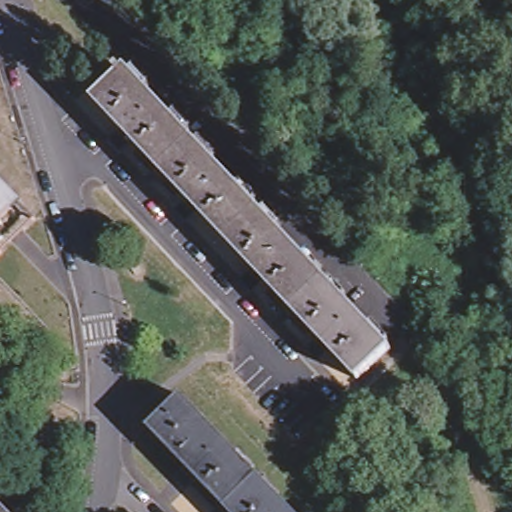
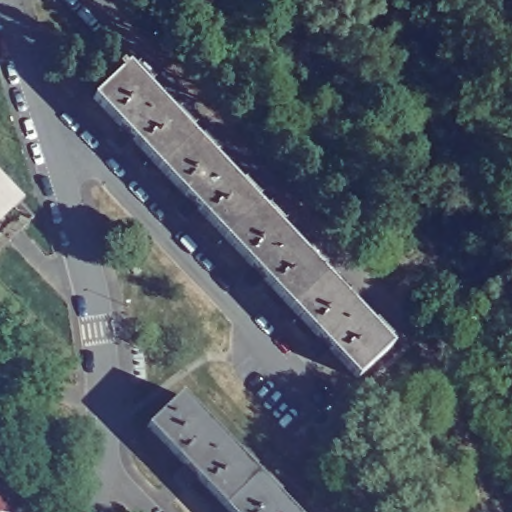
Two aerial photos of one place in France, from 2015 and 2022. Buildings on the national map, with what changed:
unchanged [(204,79),(194,68),(184,57),(173,46),(162,35),(152,25),(141,12),(131,1),(130,0),(168,0),(172,5),(182,16),(192,26),(203,38),(214,49),(224,60),(234,71),(245,81),(255,92),(265,104),(275,115),(287,126),(298,138),(309,150),(319,160),(329,171),(339,182),(350,193),(360,205),(371,216),(381,226),(392,238),(402,248),(413,260),(423,270),(433,281),(414,300),(404,289),(394,279),(382,267),(372,257),(362,245),(352,235),(341,223),(330,212),(319,201),(310,191),(299,179),(289,169),(277,157),(267,146),(256,134),(245,123),(239,116),(235,111),(225,101),(214,90),(204,79)]
unchanged [(350,380),(322,350),(319,353),(307,342),(310,339),(257,280),(254,283),(242,272),(246,269),(192,211),(189,214),(177,201),(180,198),(126,140),(123,143),(113,133),(116,130),(88,100),(120,67),(197,151),(383,350),(350,380)]
unchanged [(0,223),(0,176),(24,200),(0,223)]
unchanged [(284,512),(222,512),(187,475),(184,478),(173,468),(177,465),(139,425),(172,393),(284,512)]
unchanged [(7,512),(0,512),(0,502),(8,511),(7,512)]

